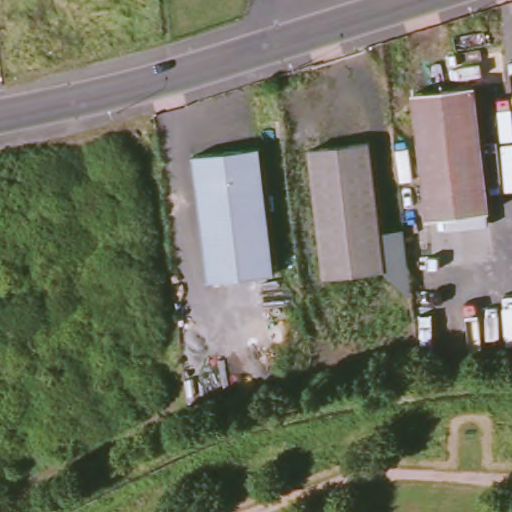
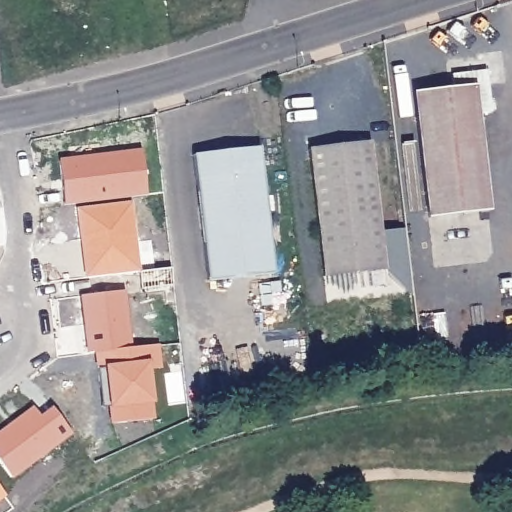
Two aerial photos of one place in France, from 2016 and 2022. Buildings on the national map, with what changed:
unchanged [(415,92),(452,88),(450,59),(504,53),(507,82),(474,87),(488,210),(430,217),(415,92)]
new [(147,191),(64,204),(61,154),(142,145),(147,191)]
unchanged [(312,151),(370,145),(383,267),(326,273),(312,151)]
unchanged [(195,155),(260,148),(273,271),(210,278),(195,155)]
new [(142,272),(87,278),(76,207),(133,202),(142,272)]
new [(133,345),(162,343),(165,368),(153,371),(157,420),(114,422),(105,367),(99,367),(96,356),(89,355),(80,295),(125,290),(133,345)]
new [(0,463),(0,432),(35,405),(41,412),(51,405),(73,433),(11,478),(0,463)]
new [(0,484),(7,492),(0,498),(0,484)]

